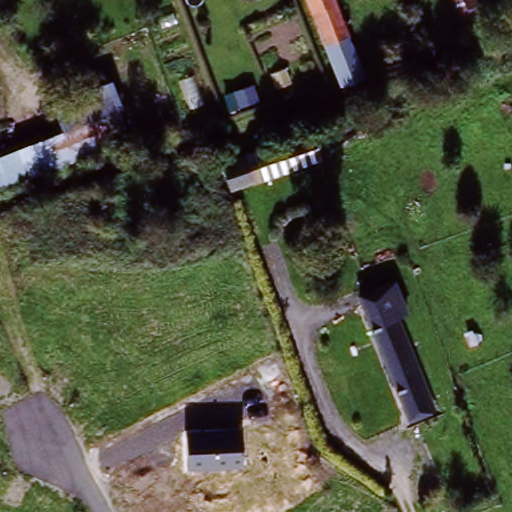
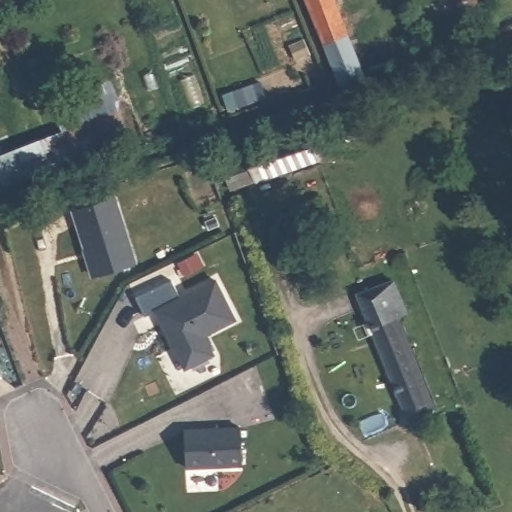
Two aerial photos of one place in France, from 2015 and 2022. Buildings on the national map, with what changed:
unchanged [(361,79),(343,86),(312,0),(332,0),(361,79)]
unchanged [(437,12),(452,6),(469,41),(453,47),(437,12)]
unchanged [(86,132),(69,96),(108,77),(124,112),(86,132)]
unchanged [(326,130),(336,155),(241,191),(231,166),(326,130)]
new [(116,198),(138,263),(96,277),(74,212),(116,198)]
demolished [(131,254),(123,232),(185,210),(193,232),(131,254)]
new [(174,280),(183,297),(218,280),(239,319),(208,335),(218,354),(190,368),(159,312),(148,317),(138,298),(174,280)]
unchanged [(409,420),(360,293),(384,283),(433,411),(409,420)]
unchanged [(185,428),(241,427),(241,466),(186,467),(185,428)]

